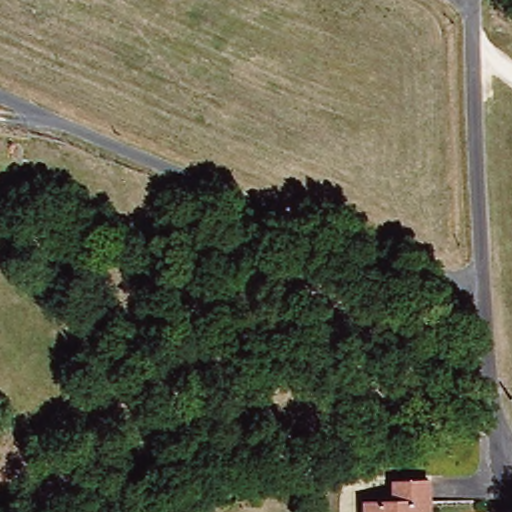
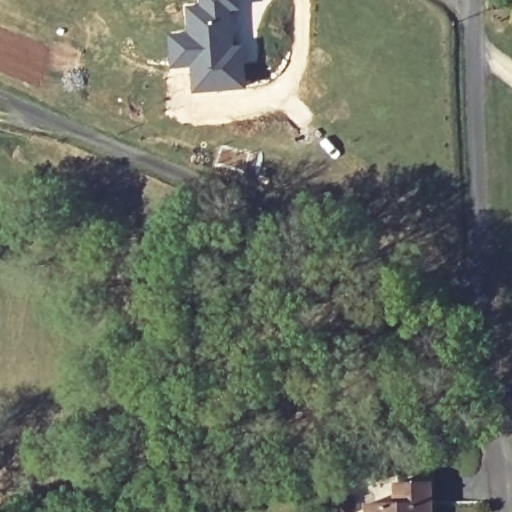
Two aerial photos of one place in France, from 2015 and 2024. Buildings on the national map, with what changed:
new [(184,3),(197,2),(197,0),(241,0),(242,41),(246,41),(247,88),(192,93),(189,68),(169,69),(167,33),(185,30),(184,3)]
unchanged [(364,504),(394,503),(393,484),(430,484),(431,512),(363,512),(364,504)]

